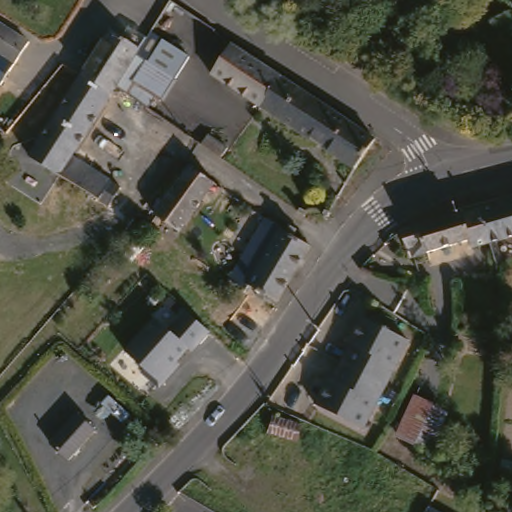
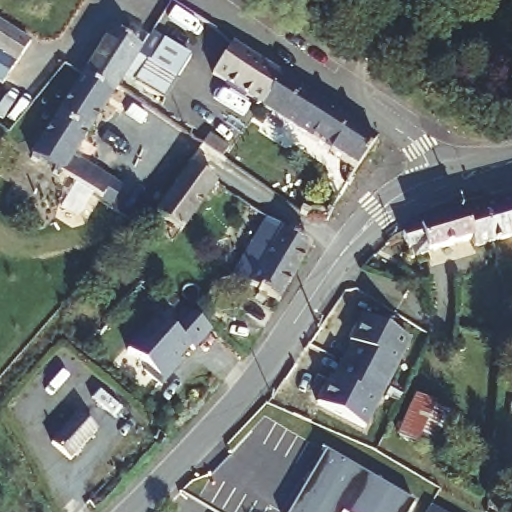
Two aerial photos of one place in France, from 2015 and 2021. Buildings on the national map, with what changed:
unchanged [(32,41),(9,75),(0,69),(0,21),(32,41)]
unchanged [(134,42),(142,47),(139,53),(118,86),(111,96),(75,154),(121,185),(129,190),(138,197),(141,198),(129,217),(31,154),(81,76),(113,28),(134,42)]
unchanged [(156,29),(193,53),(176,77),(139,53),(142,47),(156,29)]
unchanged [(373,149),(362,165),(317,135),(266,101),(216,69),(236,39),(286,72),(337,105),(382,135),(373,149)]
unchanged [(139,53),(176,77),(163,99),(157,96),(150,108),(118,86),(139,53)]
unchanged [(223,143),(217,152),(203,142),(210,133),(223,143)]
unchanged [(156,225),(164,215),(161,214),(197,164),(206,170),(223,182),(187,232),(185,230),(177,240),(156,225)]
unchanged [(471,246),(469,239),(407,256),(400,230),(477,208),(512,198),(512,234),(487,242),(471,246)]
unchanged [(272,297),(270,299),(263,295),(266,291),(254,284),(251,290),(234,279),(243,265),(273,218),(299,234),(301,230),(310,235),(307,239),(317,245),(284,304),(272,297)]
unchanged [(269,327),(245,308),(254,297),(277,316),(269,327)]
unchanged [(157,317),(168,329),(184,310),(209,332),(194,352),(191,349),(179,362),(182,363),(160,389),(140,372),(146,366),(127,352),(157,317)]
unchanged [(317,403),(330,377),(336,380),(345,363),(349,355),(354,344),(348,340),(361,314),(409,338),(388,379),(385,386),(364,427),(317,403)]
unchanged [(432,451),(418,444),(413,441),(400,434),(417,399),(419,399),(436,408),(450,414),(432,451)]
unchanged [(102,427),(74,456),(56,439),(84,409),(102,427)]
demolished [(306,426),(300,443),(269,431),(275,414),(306,426)]
new [(326,453),(413,505),(409,512),(290,512),(326,453)]
unchanged [(440,512),(427,512),(430,507),(440,512)]

